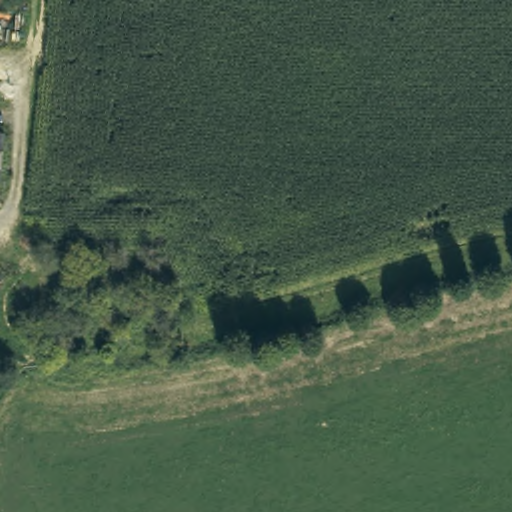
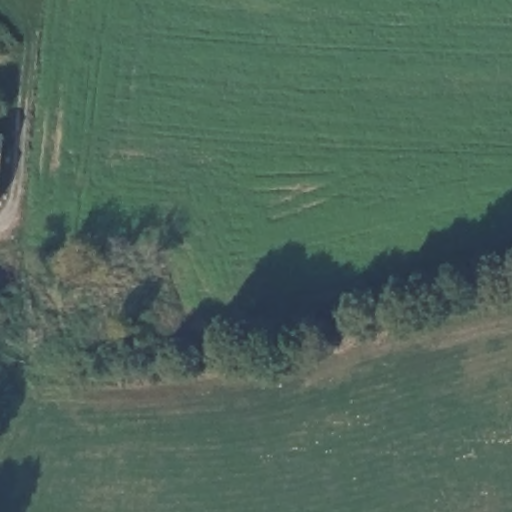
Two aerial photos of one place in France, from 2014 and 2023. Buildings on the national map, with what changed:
unchanged [(2,134),(0,155),(0,134),(2,134)]

